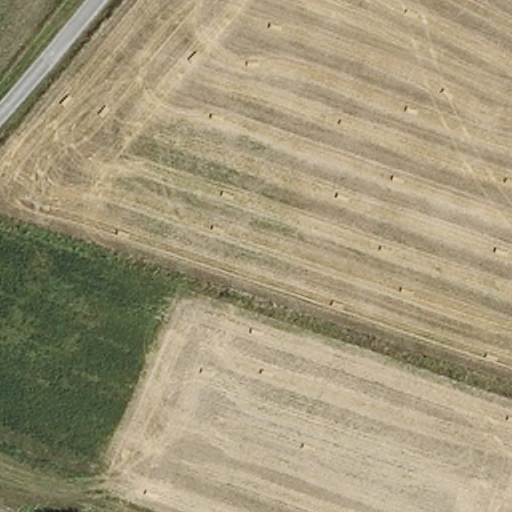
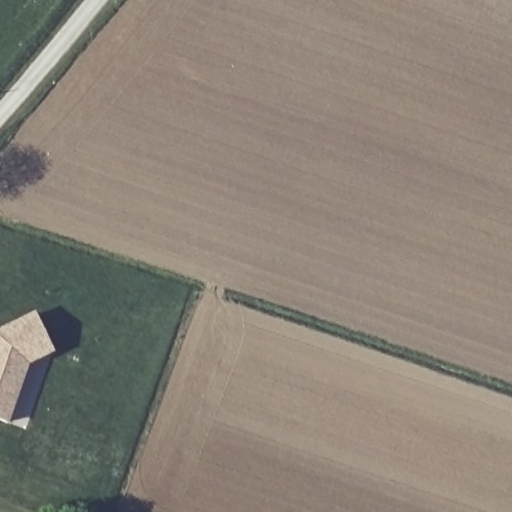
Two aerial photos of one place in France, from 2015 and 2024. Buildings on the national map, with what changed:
new [(35,317),(54,352),(27,365),(7,425),(0,423),(0,335),(35,317)]

